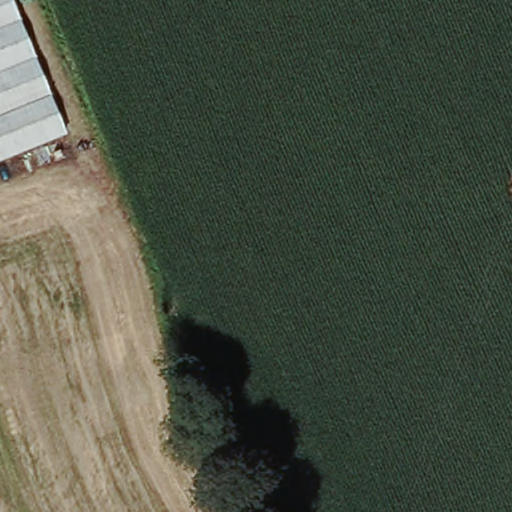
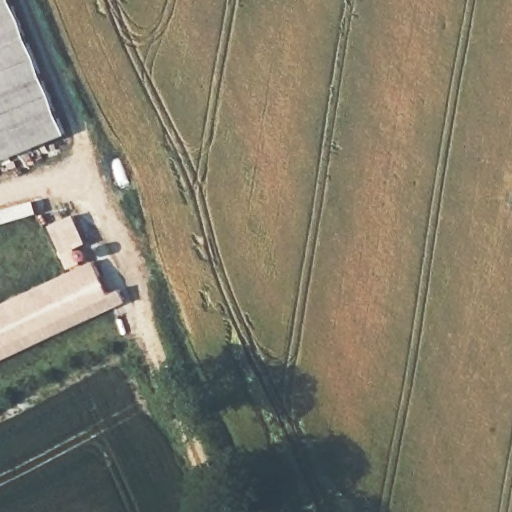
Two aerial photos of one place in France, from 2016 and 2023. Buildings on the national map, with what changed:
unchanged [(0,162),(0,0),(11,0),(66,135),(0,162)]
new [(96,262),(111,293),(122,288),(127,299),(0,359),(0,308),(96,262)]

